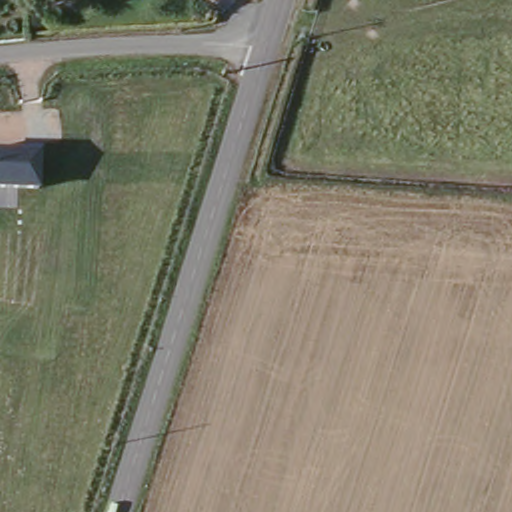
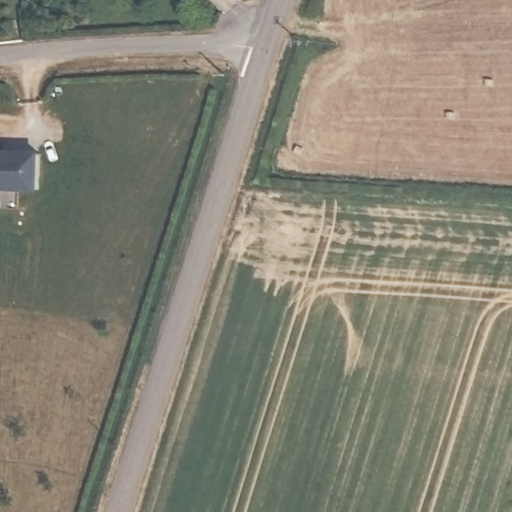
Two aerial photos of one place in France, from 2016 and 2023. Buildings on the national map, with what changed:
unchanged [(40,191),(0,190),(0,149),(42,149),(40,191)]

